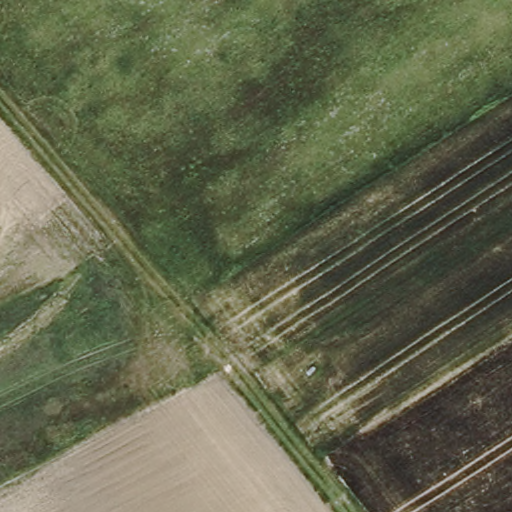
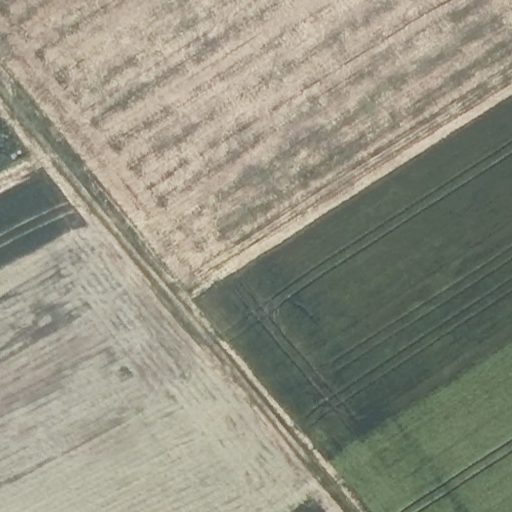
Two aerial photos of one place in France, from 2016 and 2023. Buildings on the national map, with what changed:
[]

